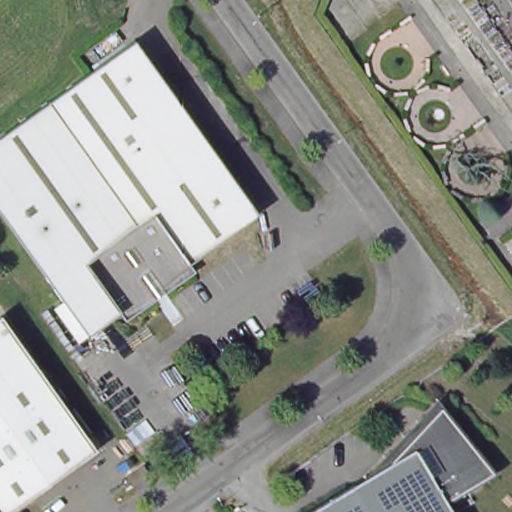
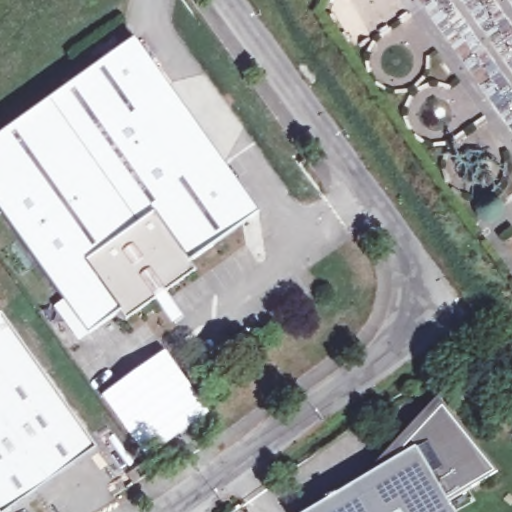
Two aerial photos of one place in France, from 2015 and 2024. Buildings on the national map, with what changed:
unchanged [(67,301),(0,207),(0,140),(117,57),(137,43),(258,216),(190,263),(196,272),(169,292),(167,289),(155,297),(157,300),(127,321),(121,312),(110,319),(90,333),(81,340),(58,307),(67,301)]
unchanged [(97,451),(12,512),(0,512),(0,317),(15,337),(97,451)]
new [(165,348),(212,411),(147,458),(100,396),(165,348)]
unchanged [(443,401),(450,409),(365,495),(360,486),(443,401)]
unchanged [(365,495),(450,409),(503,476),(455,504),(460,512),(316,512),(360,486),(365,495)]
unchanged [(127,478),(144,465),(151,475),(133,488),(127,478)]

